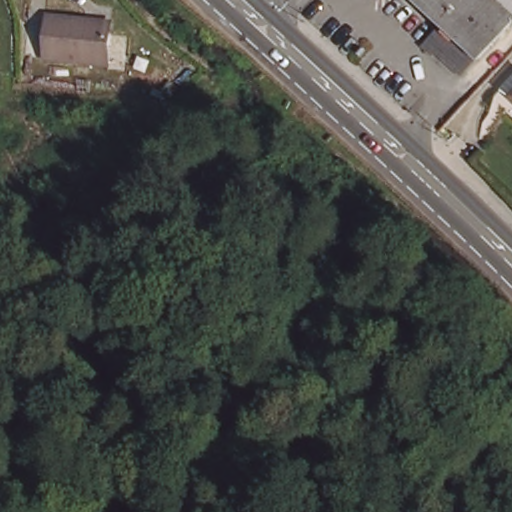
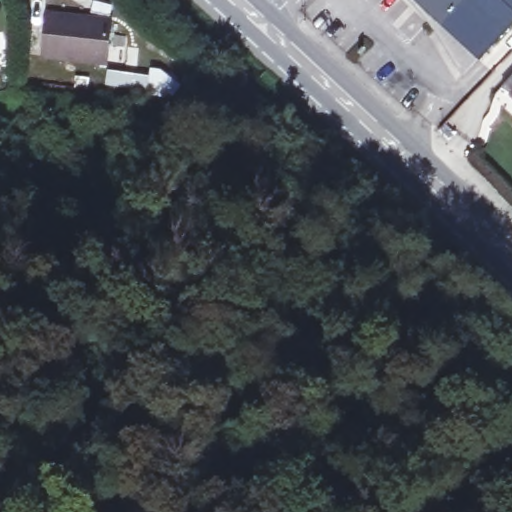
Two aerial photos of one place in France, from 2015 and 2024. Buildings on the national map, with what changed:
unchanged [(412,0),(455,0),(434,21),(412,0)]
unchanged [(434,21),(455,0),(512,0),(512,15),(472,57),(437,23),(434,21)]
unchanged [(45,11),(108,17),(105,56),(41,51),(45,11)]

